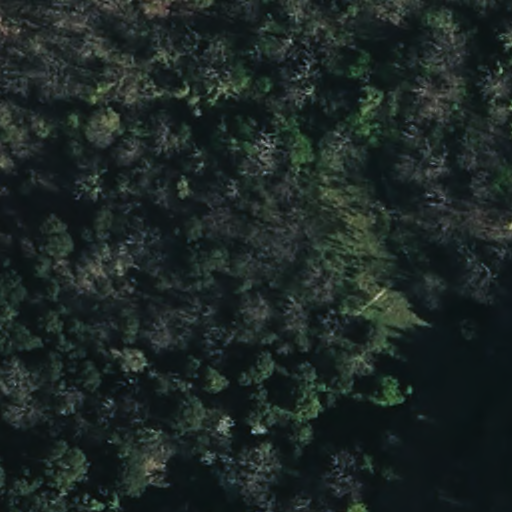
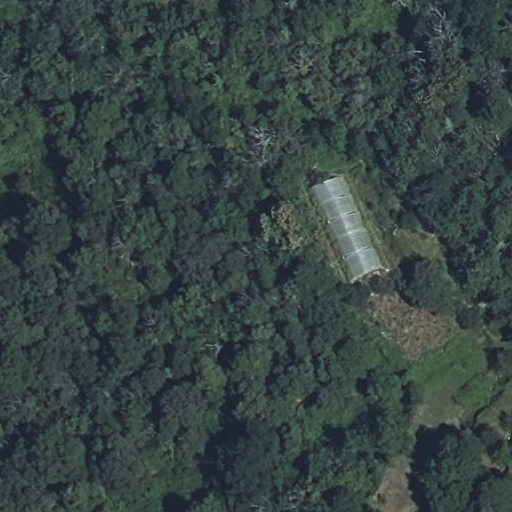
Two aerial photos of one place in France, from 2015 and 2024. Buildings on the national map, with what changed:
new [(387,267),(355,285),(310,191),(346,175),(387,267)]

